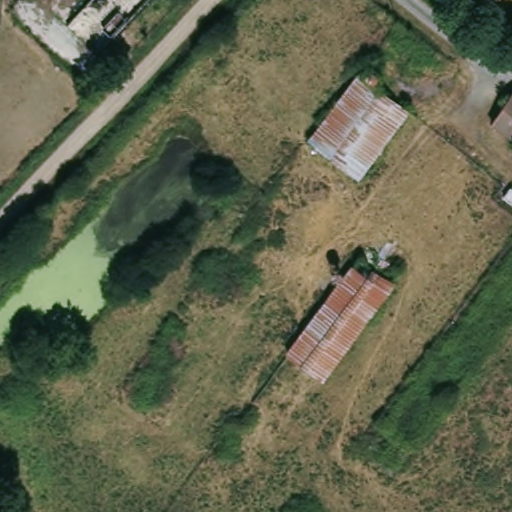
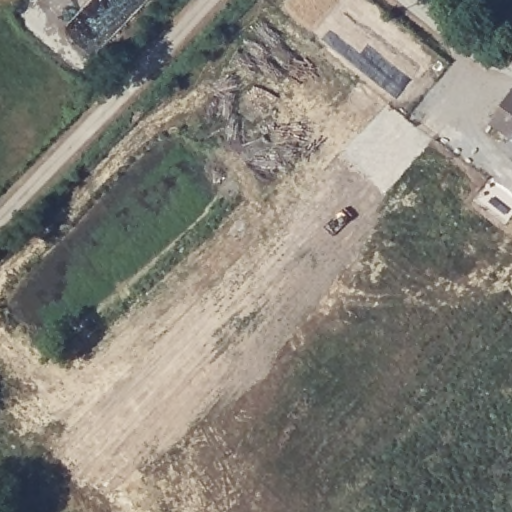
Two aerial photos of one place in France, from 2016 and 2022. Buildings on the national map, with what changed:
demolished [(364,78),(413,115),(363,183),(313,147),(364,78)]
unchanged [(491,123),(512,92),(512,137),(491,123)]
demolished [(365,246),(397,271),(325,381),(281,355),(365,246)]

